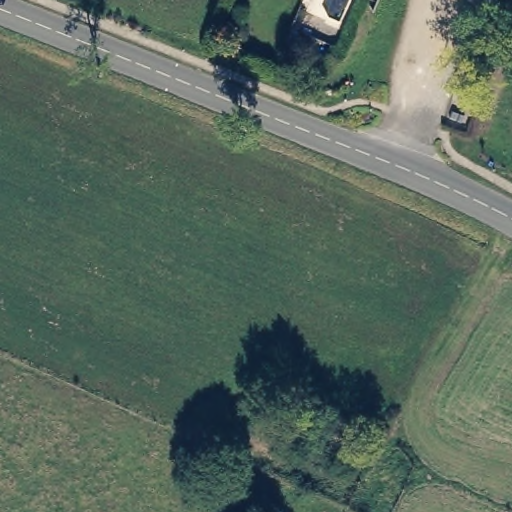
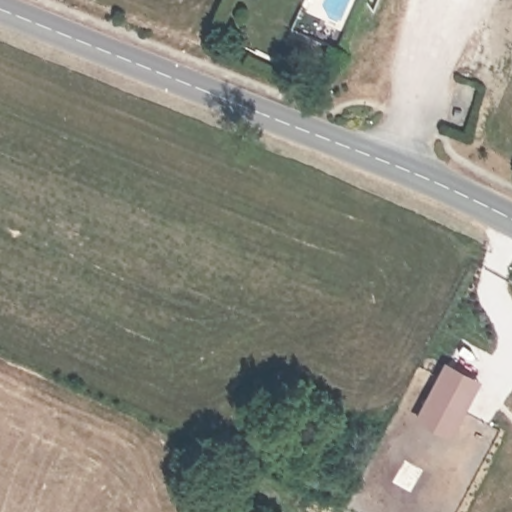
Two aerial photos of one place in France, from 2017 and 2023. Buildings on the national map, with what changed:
new [(442,378),(449,364),(479,381),(473,394),(458,422),(451,435),(420,419),(427,406),(442,378)]

